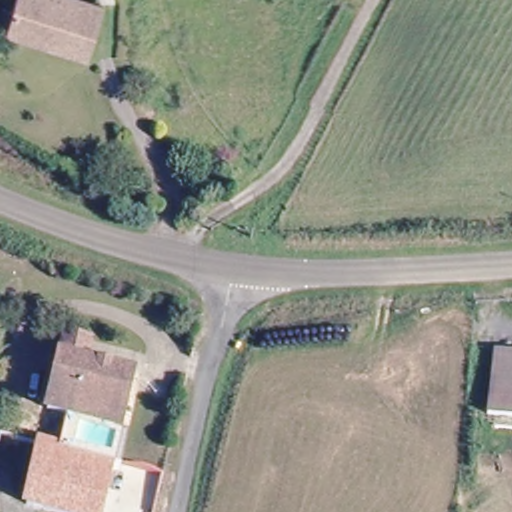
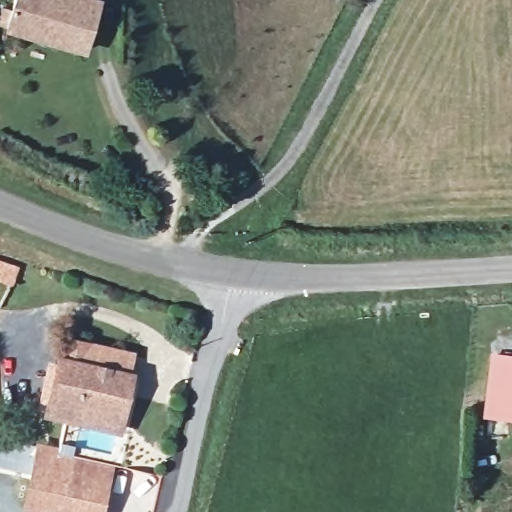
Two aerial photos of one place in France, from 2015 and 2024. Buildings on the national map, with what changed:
unchanged [(0,26),(0,15),(2,9),(14,12),(18,0),(82,0),(96,5),(86,34),(80,54),(65,49),(0,26)]
new [(0,256),(20,264),(12,287),(0,282),(0,256)]
unchanged [(70,417),(47,412),(63,338),(81,342),(80,363),(126,373),(119,412),(117,428),(70,417)]
unchanged [(512,355),(512,416),(485,413),(492,353),(512,355)]
unchanged [(56,447),(54,452),(114,464),(102,512),(32,512),(22,509),(37,442),(56,447)]

